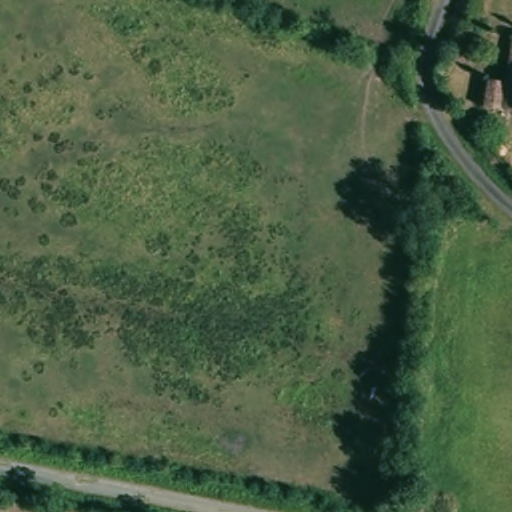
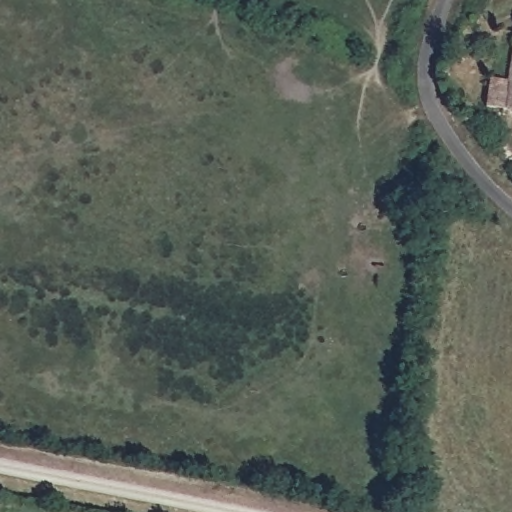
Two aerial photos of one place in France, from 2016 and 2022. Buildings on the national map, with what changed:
unchanged [(482,81),(493,82),(496,66),(511,68),(512,60),(512,115),(503,113),(478,109),(482,81)]

